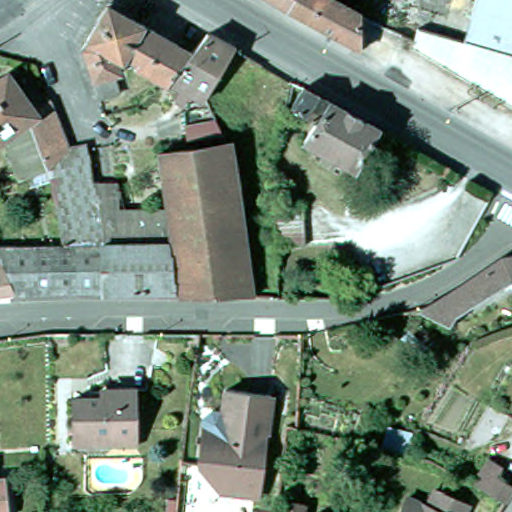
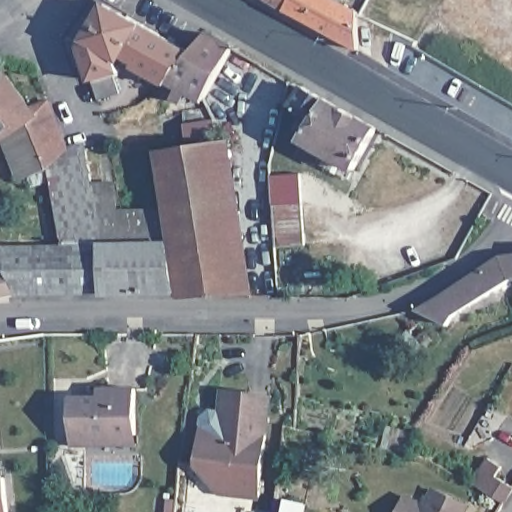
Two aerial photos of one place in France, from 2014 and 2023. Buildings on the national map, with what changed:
unchanged [(92,88),(85,68),(75,37),(97,0),(112,0),(185,42),(158,73),(127,55),(129,51),(119,46),(116,51),(110,52),(112,59),(108,61),(114,81),(92,88)]
unchanged [(283,0),(340,0),(349,5),(354,41),(283,0)]
demolished [(414,24),(461,34),(469,0),(512,0),(512,103),(410,42),(414,24)]
unchanged [(201,23),(227,38),(198,88),(170,74),(164,84),(155,79),(158,73),(185,42),(201,23)]
unchanged [(31,118),(0,139),(0,77),(2,75),(27,113),(47,100),(71,152),(57,156),(31,118)]
unchanged [(321,159),(326,149),(303,136),(317,113),(292,98),(303,81),(378,124),(353,165),(347,175),(321,159)]
unchanged [(202,95),(215,121),(177,128),(172,98),(202,95)]
unchanged [(169,290),(153,146),(228,140),(246,294),(169,290)]
unchanged [(57,242),(43,159),(57,156),(71,152),(83,150),(98,240),(157,238),(163,290),(6,289),(0,290),(0,244),(57,242)]
unchanged [(274,251),(274,208),(302,209),(303,250),(274,251)]
unchanged [(451,310),(443,321),(414,309),(414,304),(415,302),(440,293),(497,252),(512,251),(512,275),(509,276),(451,310)]
unchanged [(426,344),(417,358),(407,351),(416,338),(426,344)]
unchanged [(109,433),(69,434),(68,387),(107,387),(107,378),(132,378),(134,424),(134,433),(109,433)]
unchanged [(206,487),(198,475),(202,443),(203,436),(217,426),(224,427),(228,402),(276,410),(258,511),(227,506),(218,504),(206,487)]
unchanged [(416,441),(413,460),(383,453),(388,433),(417,439),(416,441)]
unchanged [(417,500),(426,482),(459,498),(452,512),(387,512),(398,490),(417,500)]
unchanged [(512,494),(512,502),(508,508),(489,497),(498,484),(512,494)]
unchanged [(3,486),(6,512),(0,512),(0,486),(3,486)]
unchanged [(310,512),(290,512),(291,507),(310,512)]

